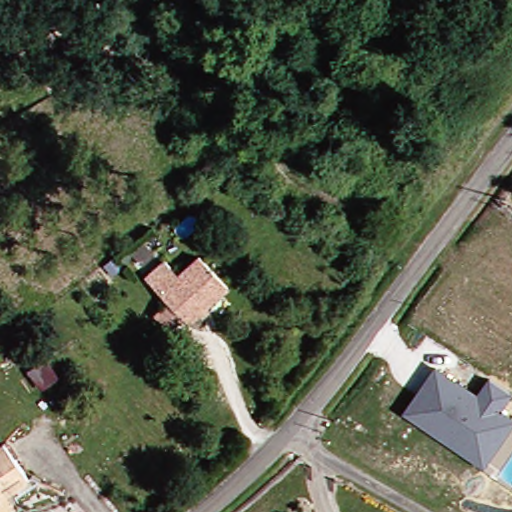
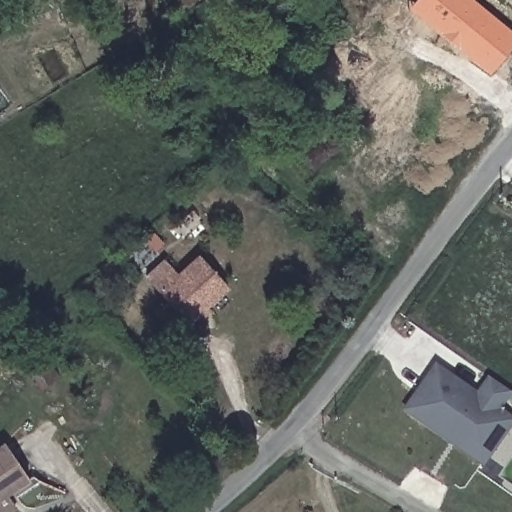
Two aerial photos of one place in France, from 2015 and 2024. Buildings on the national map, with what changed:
new [(512,31),(512,45),(490,72),(408,5),(413,0),(475,0),(512,31)]
unchanged [(159,285),(153,278),(171,264),(176,270),(196,254),(227,288),(187,322),(159,285)]
unchanged [(447,440),(404,410),(435,366),(500,411),(512,419),(512,421),(482,463),(447,440)]
unchanged [(0,512),(0,444),(5,440),(26,477),(7,488),(20,509),(15,512),(0,512)]

